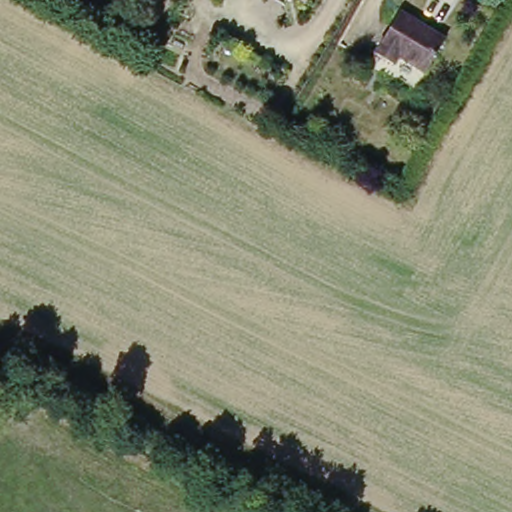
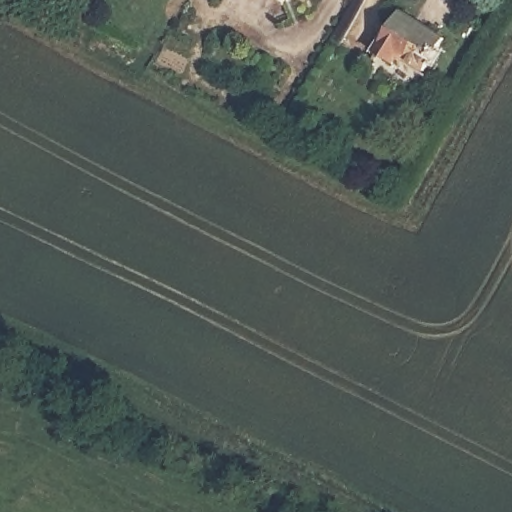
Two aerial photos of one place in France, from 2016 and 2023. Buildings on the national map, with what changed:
unchanged [(402,14),(447,44),(430,74),(397,54),(388,66),(374,57),(402,14)]

